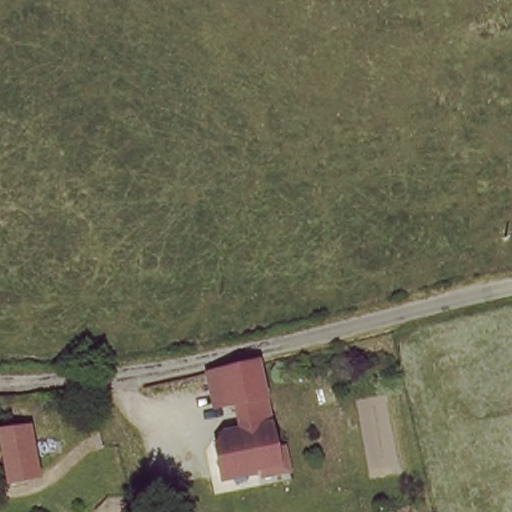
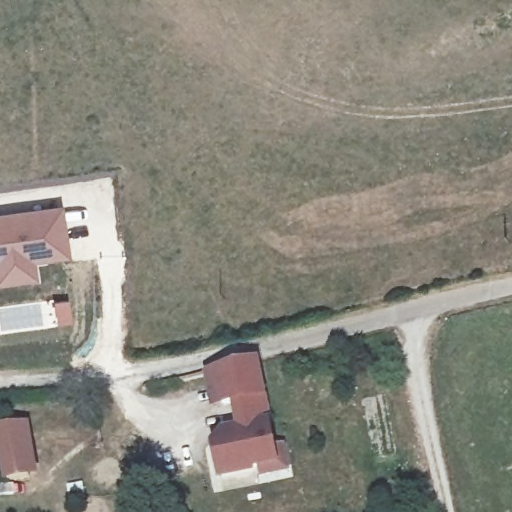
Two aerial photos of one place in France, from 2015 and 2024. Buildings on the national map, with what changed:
new [(61,206),(68,256),(33,261),(35,279),(0,282),(0,214),(61,206)]
unchanged [(228,406),(223,374),(260,365),(266,400),(228,406)]
unchanged [(271,429),(232,435),(228,406),(266,400),(271,429)]
unchanged [(30,475),(8,478),(3,431),(26,428),(30,475)]
unchanged [(277,469),(223,479),(217,437),(232,435),(271,429),(277,469)]

